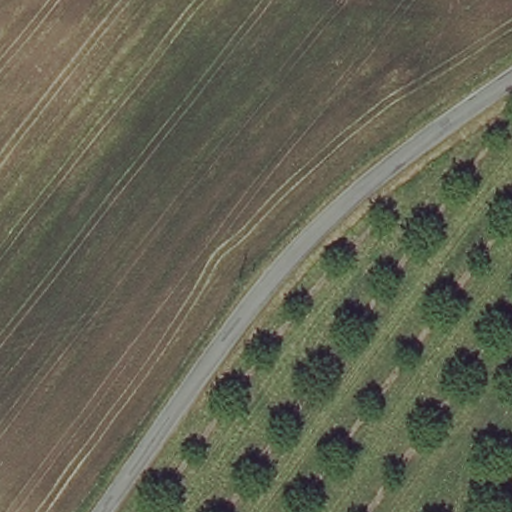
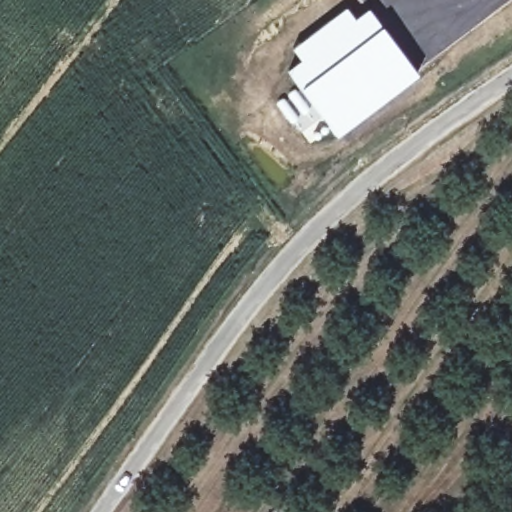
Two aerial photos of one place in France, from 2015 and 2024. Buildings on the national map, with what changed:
new [(298,59),(291,47),(346,5),(355,16),(368,6),(418,73),(334,135),(285,70),(298,59)]

